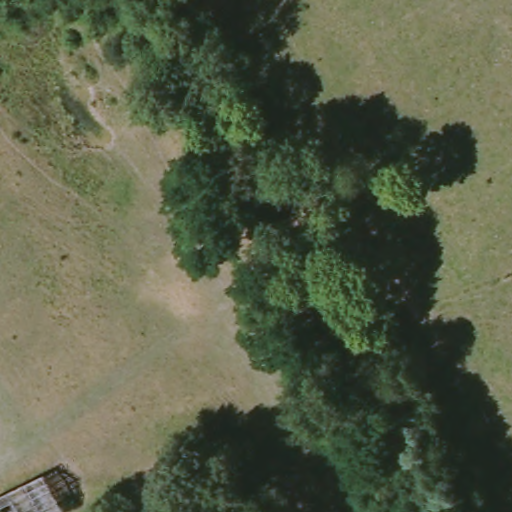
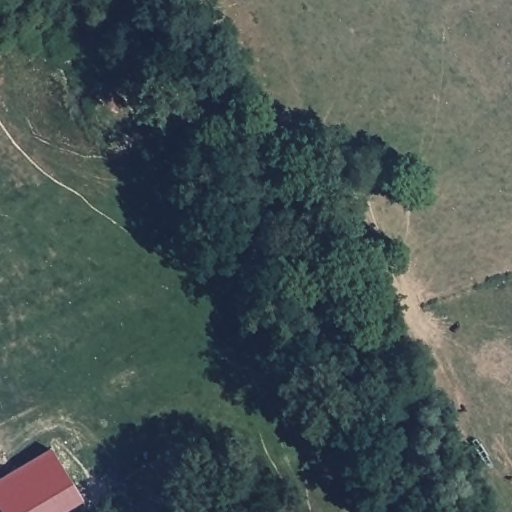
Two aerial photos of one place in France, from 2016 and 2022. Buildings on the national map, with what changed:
new [(84,503),(66,512),(0,512),(0,481),(51,451),(84,503)]

